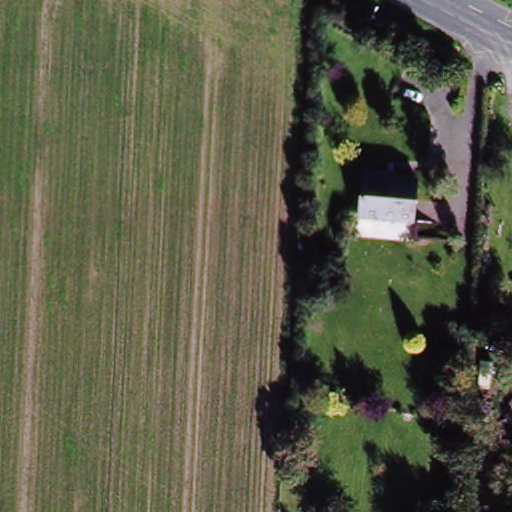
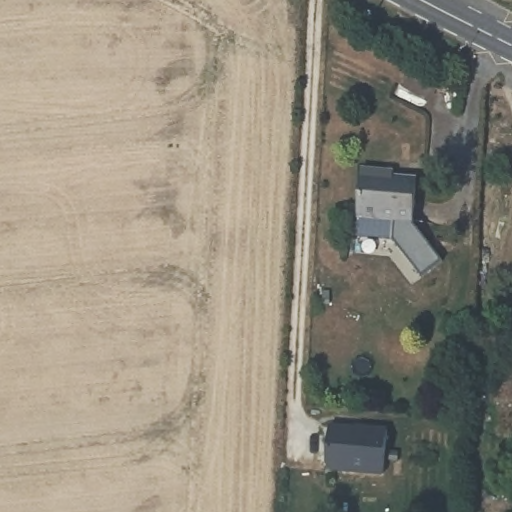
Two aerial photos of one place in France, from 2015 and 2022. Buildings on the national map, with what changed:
unchanged [(383,180),(383,184),(415,187),(412,223),(356,218),(359,178),(383,180)]
new [(333,429),(369,432),(369,430),(390,432),(387,476),(334,471),(330,466),(333,429)]

